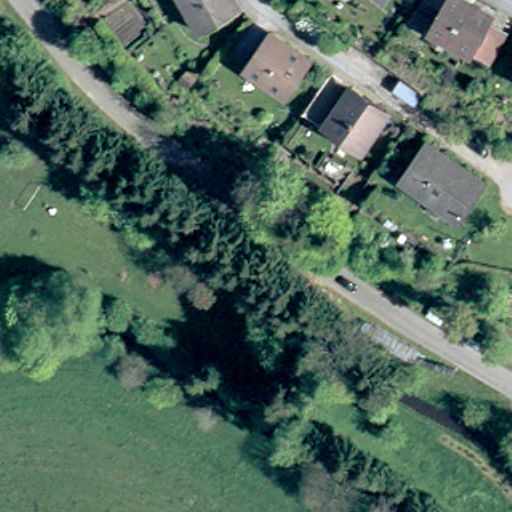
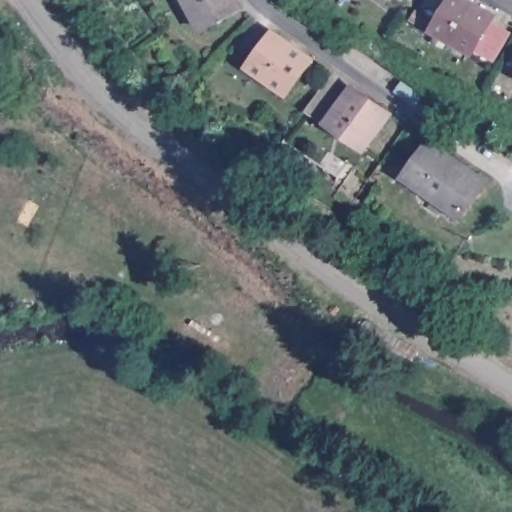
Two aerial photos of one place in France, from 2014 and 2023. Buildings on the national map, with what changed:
unchanged [(205,33),(187,0),(235,0),(243,14),(205,33)]
unchanged [(392,2),(388,0),(394,0),(392,2)]
unchanged [(479,55),(439,33),(458,0),(468,0),(500,20),(479,55)]
unchanged [(290,96),(255,72),(277,37),(314,64),(290,96)]
unchanged [(388,93),(398,79),(424,95),(415,110),(388,93)]
unchanged [(374,152),(334,125),(355,91),(395,120),(374,152)]
unchanged [(318,104),(304,125),(295,119),(309,97),(318,104)]
unchanged [(446,212),(405,184),(427,150),(469,180),(485,185),(462,221),(446,212)]

